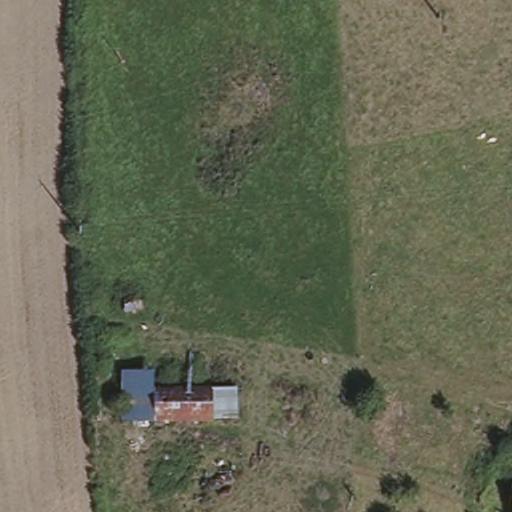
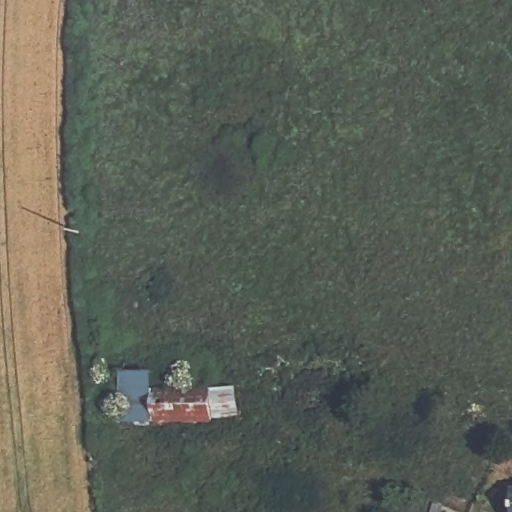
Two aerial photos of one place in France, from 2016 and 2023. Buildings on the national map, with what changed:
unchanged [(150,383),(150,418),(126,418),(124,370),(156,370),(156,383),(150,383)]
unchanged [(211,385),(211,419),(150,418),(150,383),(211,385)]
unchanged [(211,385),(240,385),(242,418),(211,419),(211,385)]

